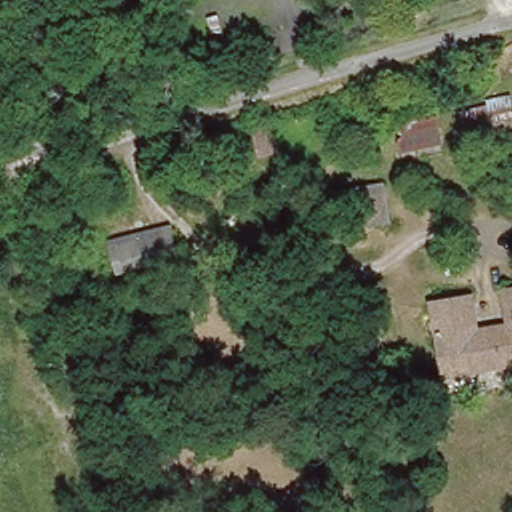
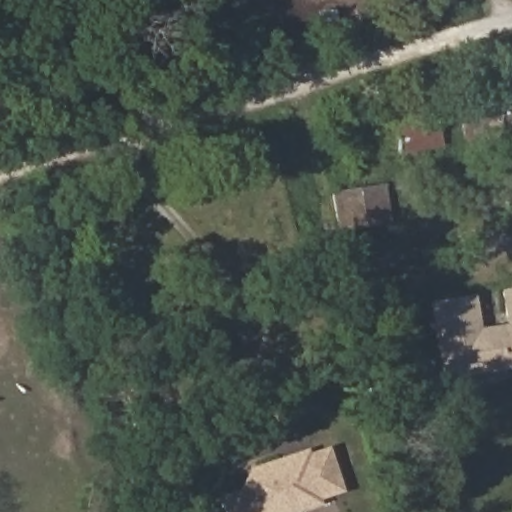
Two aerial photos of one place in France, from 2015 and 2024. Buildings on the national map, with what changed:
unchanged [(486,113),(466,117),(463,105),(492,98),(491,93),(510,89),(512,97),(512,119),(488,124),(486,113)]
unchanged [(406,127),(410,126),(407,113),(440,106),(445,132),(408,140),(406,127)]
unchanged [(333,181),(372,174),(376,189),(385,187),(392,225),(340,237),(337,194),(333,181)]
unchanged [(170,259),(127,271),(120,239),(125,238),(122,223),(144,218),(148,232),(161,228),(170,259)]
unchanged [(474,299),(480,332),(508,327),(503,294),(512,292),(512,367),(445,378),(432,306),(474,299)]
unchanged [(172,422),(187,480),(164,486),(150,428),(172,422)]
new [(302,452),(305,457),(324,451),(337,490),(312,498),(314,502),(282,512),(225,512),(220,497),(240,490),(250,470),(302,452)]

